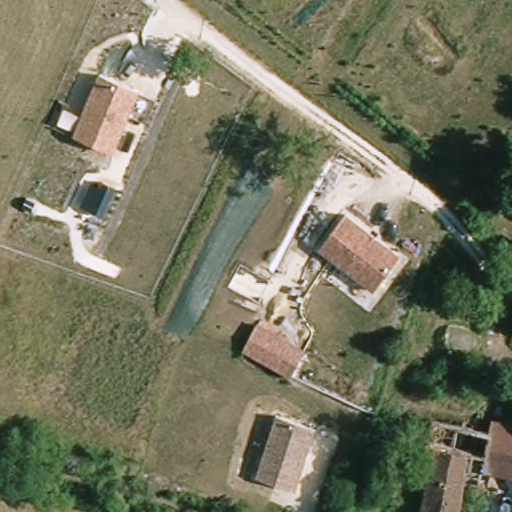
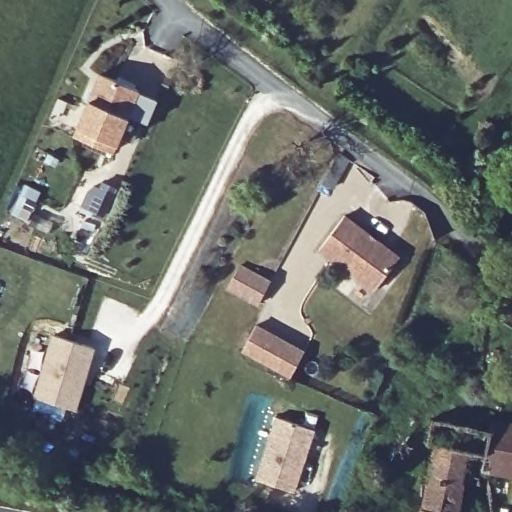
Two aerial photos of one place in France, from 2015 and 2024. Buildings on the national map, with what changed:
unchanged [(115,150),(75,134),(100,73),(140,89),(115,150)]
new [(92,181),(113,190),(101,217),(80,207),(92,181)]
unchanged [(376,286),(320,246),(345,213),(400,252),(376,286)]
new [(240,265),(257,274),(251,287),(232,282),(240,265)]
unchanged [(303,348),(289,377),(241,352),(256,323),(303,348)]
new [(54,335),(93,347),(75,409),(35,398),(54,335)]
unchanged [(295,488),(255,474),(277,414),(315,427),(295,488)]
unchanged [(442,444),(431,441),(437,416),(496,430),(484,483),(485,487),(469,484),(464,512),(434,512),(428,510),(442,444)]
unchanged [(496,474),(494,488),(485,487),(484,483),(496,430),(498,419),(512,421),(512,476),(496,474)]
unchanged [(428,510),(434,512),(428,512),(428,510)]

